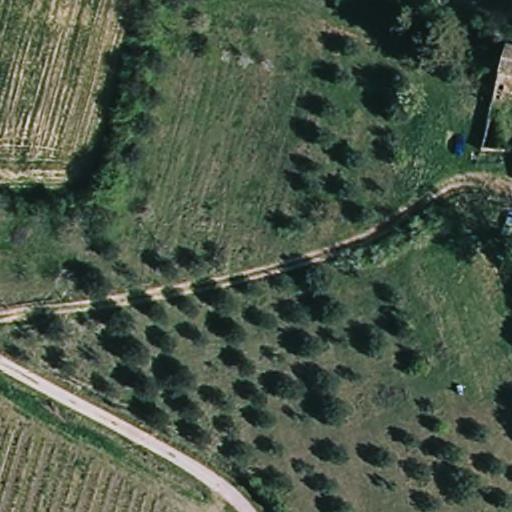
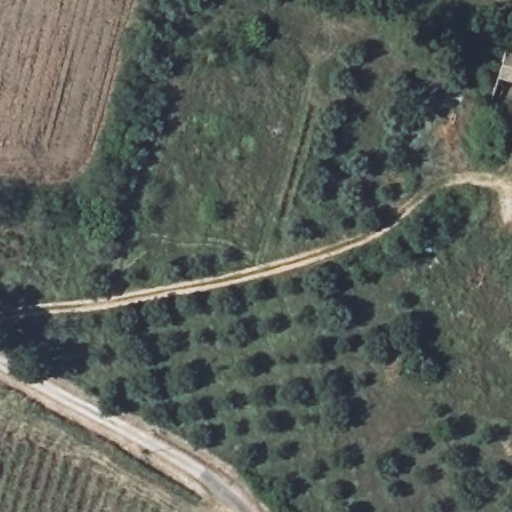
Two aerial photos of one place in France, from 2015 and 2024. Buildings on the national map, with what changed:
unchanged [(490,52),(512,58),(512,87),(482,80),(490,52)]

